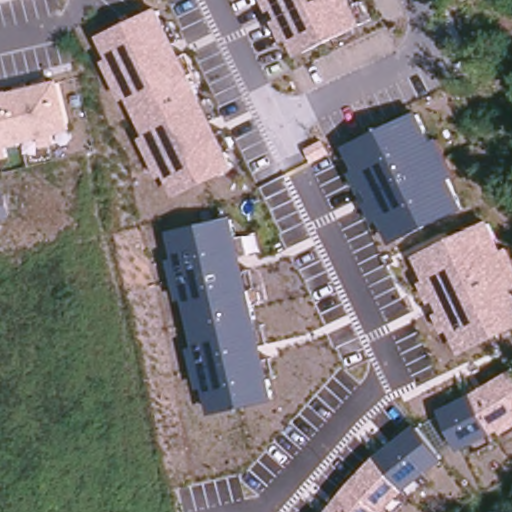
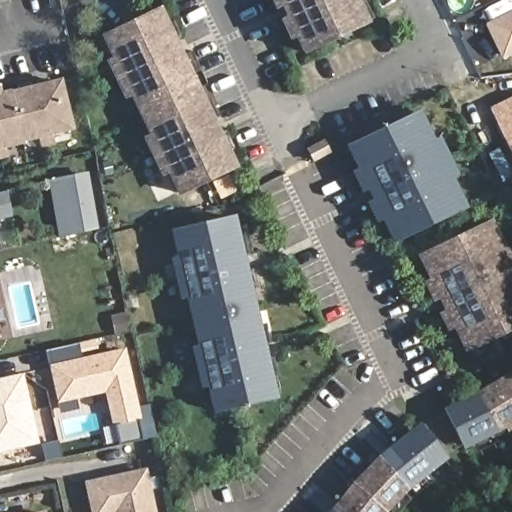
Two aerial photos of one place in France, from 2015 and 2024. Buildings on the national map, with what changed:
unchanged [(367,23),(302,54),(294,38),(287,41),(277,20),(284,16),(278,5),(272,8),(268,0),(356,0),(367,23)]
unchanged [(237,167),(177,194),(167,174),(160,178),(141,140),(150,136),(130,95),(122,99),(104,60),(112,56),(102,35),(160,6),(237,167)]
new [(512,47),(498,54),(485,24),(512,11),(512,47)]
unchanged [(72,130),(57,134),(57,144),(43,146),(42,154),(29,152),(29,139),(11,145),(13,158),(0,161),(0,85),(2,85),(4,93),(62,80),(72,130)]
new [(512,98),(512,159),(488,109),(512,98)]
unchanged [(434,140),(441,137),(460,175),(453,178),(467,209),(392,245),(381,221),(374,224),(362,198),(367,196),(366,192),(362,193),(352,171),(355,170),(343,146),(418,110),(434,140)]
new [(97,230),(69,234),(59,177),(87,171),(97,230)]
unchanged [(12,217),(0,220),(0,194),(7,192),(12,217)]
unchanged [(242,238),(263,233),(268,252),(245,258),(248,271),(258,269),(262,289),(253,292),(261,323),(269,321),(274,344),(265,346),(269,362),(277,361),(281,377),(274,380),(278,398),(212,415),(207,390),(200,391),(191,348),(195,347),(185,300),(179,301),(171,257),(177,255),(172,233),(237,217),(242,238)]
unchanged [(512,247),(512,330),(465,352),(455,330),(448,332),(440,314),(445,311),(439,301),(435,302),(425,283),(429,281),(417,256),(492,220),(505,250),(512,247)]
new [(125,348),(140,416),(111,421),(104,394),(57,404),(47,364),(125,348)]
unchanged [(502,431),(496,434),(500,443),(480,452),(474,445),(462,449),(442,408),(475,392),(512,371),(512,433),(506,436),(502,431)]
new [(21,376),(35,440),(0,448),(0,381),(21,376)]
unchanged [(429,485),(417,495),(412,488),(407,493),(412,499),(398,511),(392,505),(388,512),(328,512),(329,510),(379,454),(417,422),(448,460),(425,479),(429,485)]
new [(89,512),(82,480),(146,467),(156,512),(89,512)]

